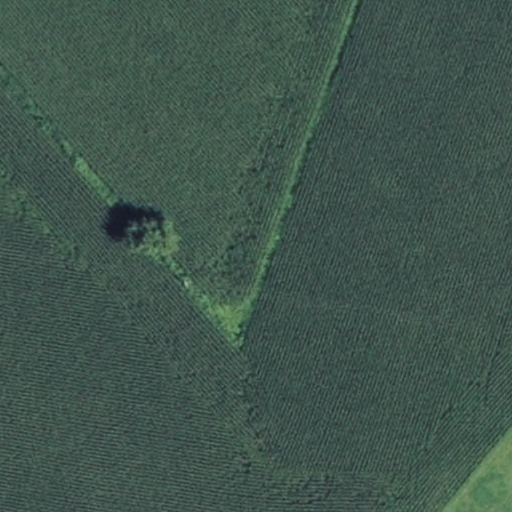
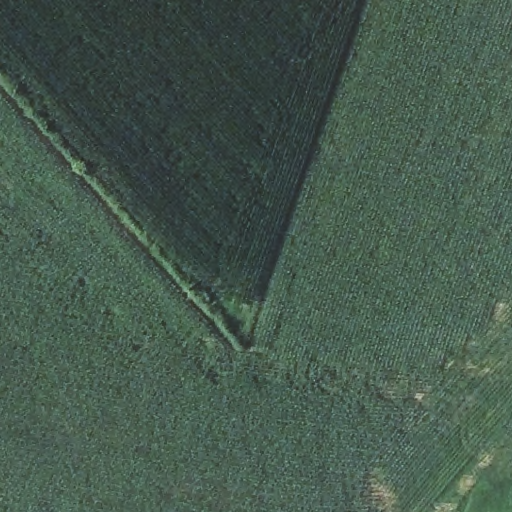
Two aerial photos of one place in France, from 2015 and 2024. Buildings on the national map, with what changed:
[]

